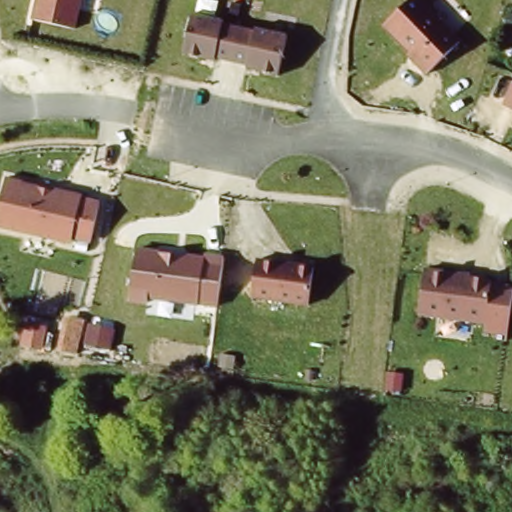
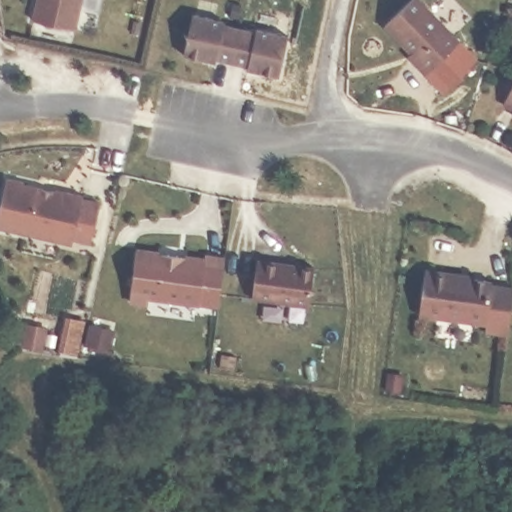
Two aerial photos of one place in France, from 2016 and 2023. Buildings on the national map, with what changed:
unchanged [(33,0),(79,0),(72,27),(30,17),(33,0)]
unchanged [(412,52),(385,25),(410,0),(421,0),(462,41),(428,74),(415,60),(410,55),(412,52)]
unchanged [(193,14),(225,21),(225,24),(256,31),(257,28),(288,35),(280,76),(248,69),(249,65),(217,59),(216,62),(185,54),(193,14)]
unchanged [(512,107),(505,103),(512,89),(512,107)]
unchanged [(97,194),(90,244),(0,227),(0,212),(5,180),(97,194)]
unchanged [(205,259),(206,256),(225,258),(219,306),(150,297),(148,303),(130,301),(137,250),(160,253),(187,257),(185,262),(205,264),(205,259)]
unchanged [(315,267),(310,305),(253,297),(258,260),(315,267)]
unchanged [(488,323),(420,314),(427,269),(462,273),(462,277),(493,281),(488,323)]

